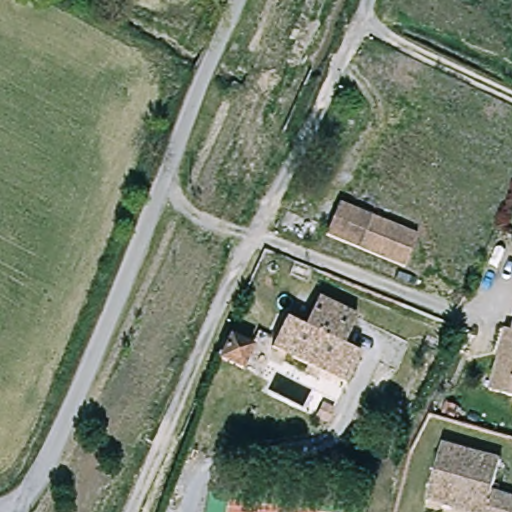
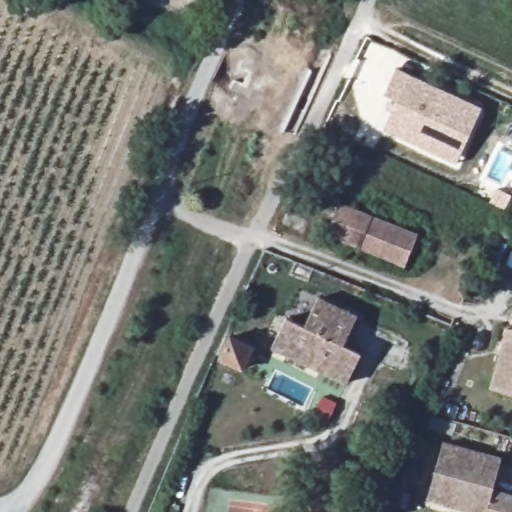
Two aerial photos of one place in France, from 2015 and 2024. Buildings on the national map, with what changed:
new [(396,102),(383,95),(396,68),(485,107),(456,168),(381,130),(396,102)]
unchanged [(420,236),(407,270),(327,237),(341,205),(420,236)]
unchanged [(354,386),(279,350),(293,320),(311,329),(325,300),(364,320),(350,348),(369,357),(354,386)]
unchanged [(505,337),(512,339),(512,404),(489,398),(505,337)]
unchanged [(256,354),(246,375),(220,363),(229,341),(256,354)]
unchanged [(332,420),(318,413),(324,400),(338,406),(332,420)]
unchanged [(441,437),(499,453),(491,485),(512,491),(512,512),(482,512),(483,509),(452,500),(425,493),(441,437)]

